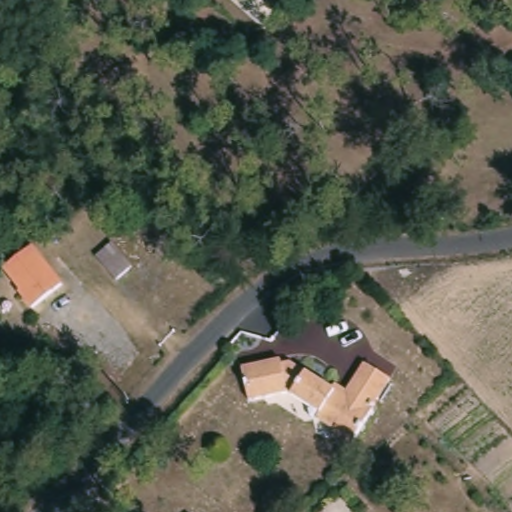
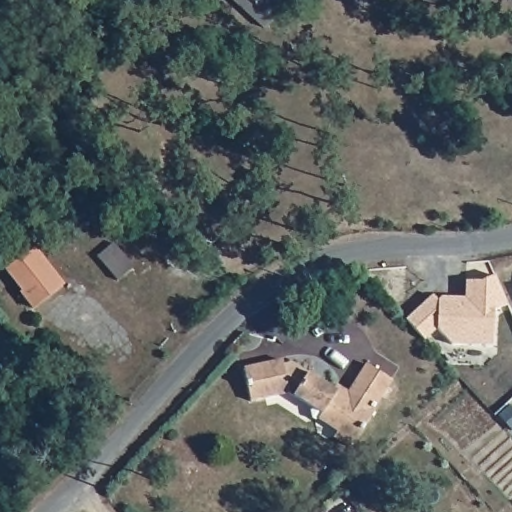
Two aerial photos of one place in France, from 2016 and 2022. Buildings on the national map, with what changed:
unchanged [(259,31),(225,0),(251,0),(271,19),(259,31)]
unchanged [(131,267),(116,280),(96,257),(112,244),(131,267)]
unchanged [(60,290),(30,312),(18,297),(21,295),(4,274),(31,254),(60,290)]
unchanged [(4,271),(0,270),(0,260),(6,263),(4,271)]
new [(454,345),(437,327),(424,340),(405,319),(431,295),(437,301),(441,297),(464,299),(465,282),(494,276),(505,303),(492,311),(490,345),(454,345)]
unchanged [(335,443),(337,440),(316,425),(312,427),(310,425),(308,416),(310,413),(287,398),(252,406),(244,374),(281,363),(284,370),(290,367),(333,395),(337,390),(349,398),(367,370),(391,386),(373,415),(375,416),(359,442),(351,452),(335,443)]

